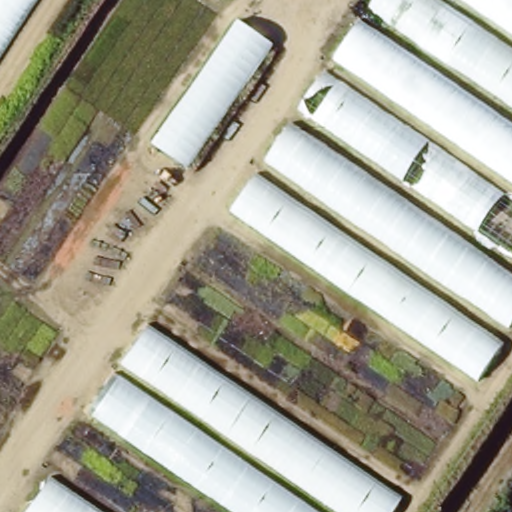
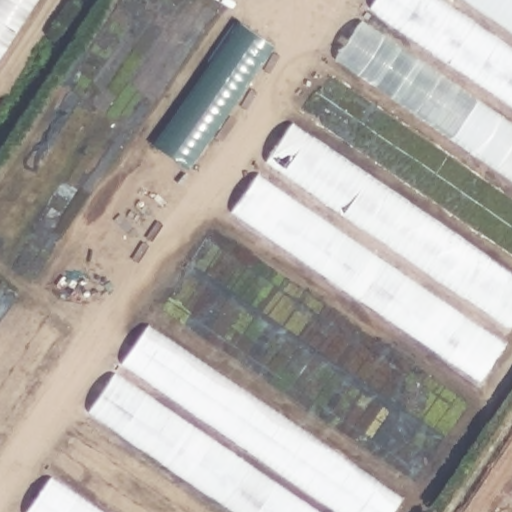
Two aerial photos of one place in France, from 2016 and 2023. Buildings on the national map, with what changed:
unchanged [(43,0),(0,65),(0,0),(43,0)]
unchanged [(380,0),(512,0),(512,343),(486,380),(233,214),(380,0)]
unchanged [(153,147),(240,21),(280,47),(192,173),(153,147)]
unchanged [(152,327),(410,503),(404,512),(236,512),(91,413),(152,327)]
unchanged [(54,481),(98,512),(32,512),(54,481)]
unchanged [(512,504),(512,512),(506,512),(512,504)]

